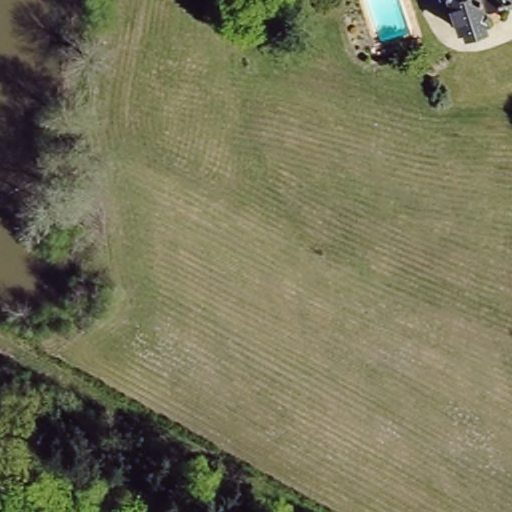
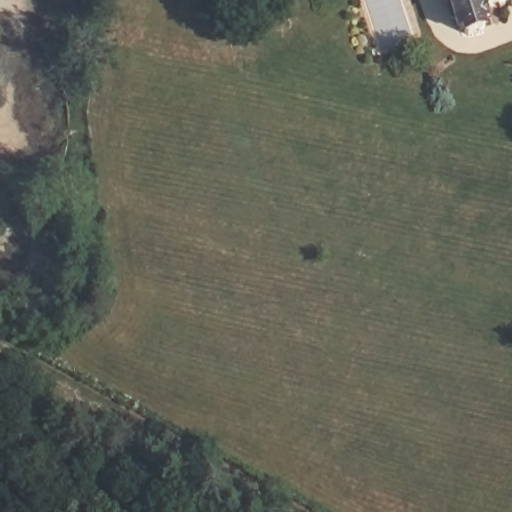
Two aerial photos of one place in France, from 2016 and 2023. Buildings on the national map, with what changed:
unchanged [(494,6),(484,33),(474,36),(458,22),(454,0),(511,0),(494,6)]

